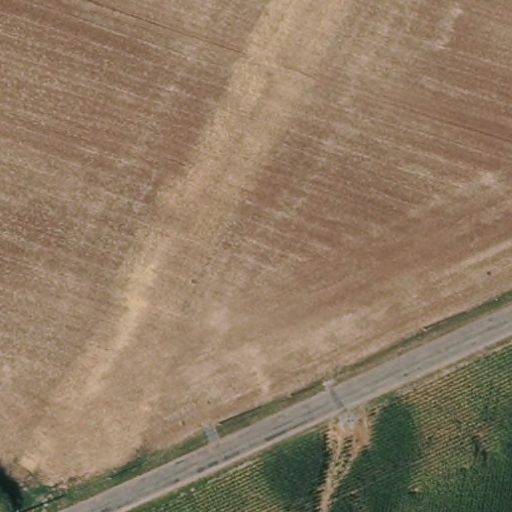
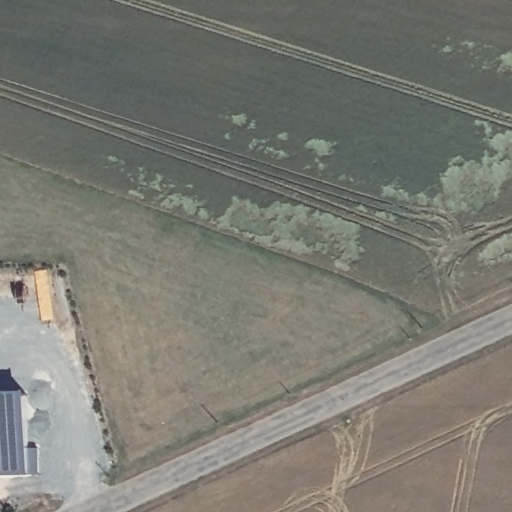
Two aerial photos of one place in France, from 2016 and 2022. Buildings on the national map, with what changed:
new [(0,474),(0,391),(27,391),(29,474),(0,474)]

